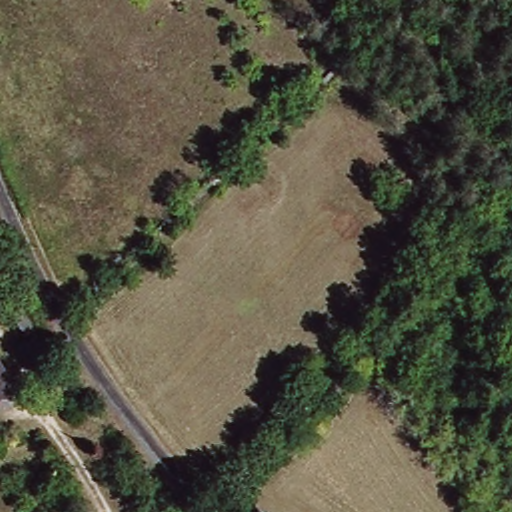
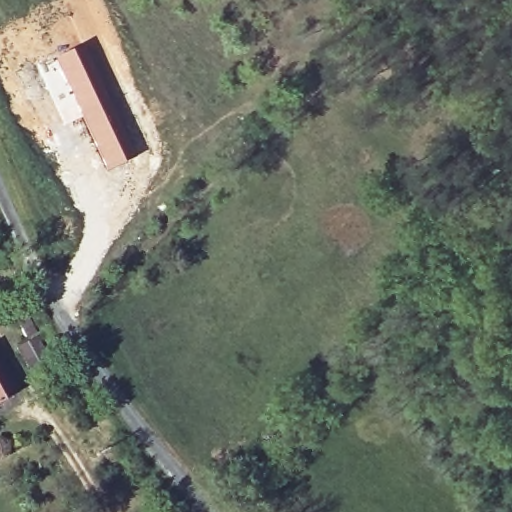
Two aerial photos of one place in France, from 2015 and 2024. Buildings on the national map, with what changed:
new [(87,43),(110,91),(134,155),(106,171),(81,117),(65,124),(53,95),(63,91),(51,61),(87,43)]
unchanged [(35,328),(27,334),(7,305),(16,299),(35,328)]
unchanged [(24,348),(40,337),(50,353),(33,362),(24,348)]
unchanged [(15,390),(0,399),(0,366),(15,390)]

